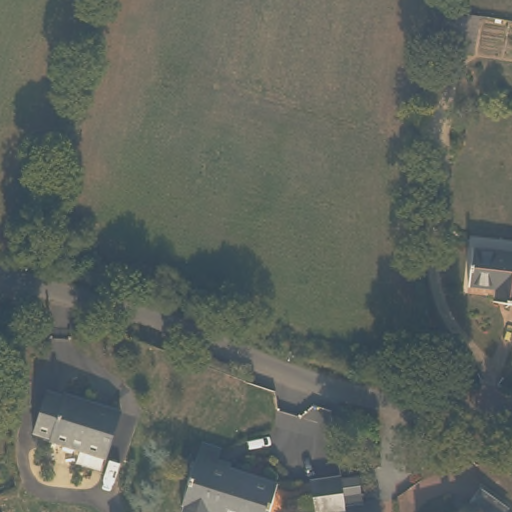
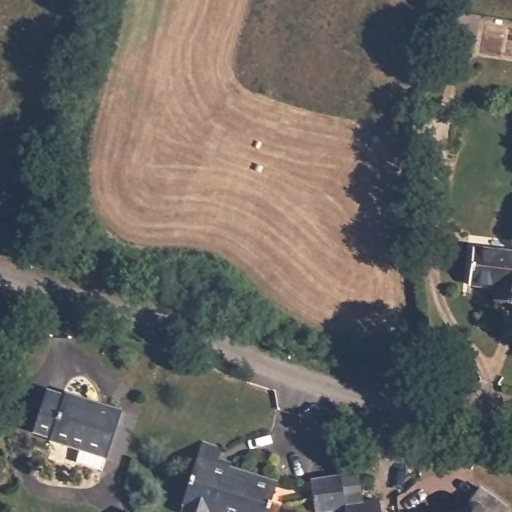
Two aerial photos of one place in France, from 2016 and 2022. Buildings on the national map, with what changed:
unchanged [(478,13),(471,43),(448,40),(457,9),(478,13)]
unchanged [(512,249),(512,301),(491,298),(492,286),(467,282),(475,242),(512,249)]
unchanged [(66,393),(66,391),(122,409),(107,451),(106,450),(102,465),(76,457),(81,444),(49,435),(50,432),(33,426),(47,388),(66,393)]
unchanged [(280,477),(269,512),(250,512),(217,501),(213,512),(203,512),(184,505),(202,451),(280,477)]
unchanged [(372,466),(380,512),(348,512),(347,506),(342,471),(372,466)]
unchanged [(347,506),(317,511),(313,474),(342,471),(347,506)]
unchanged [(464,510),(466,504),(473,498),(483,485),(507,504),(502,512),(456,512),(464,510)]

